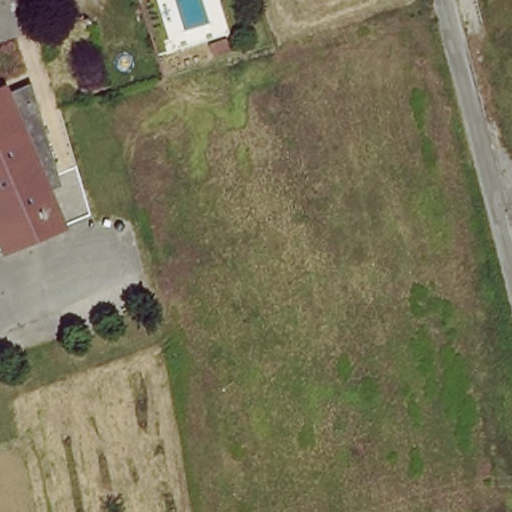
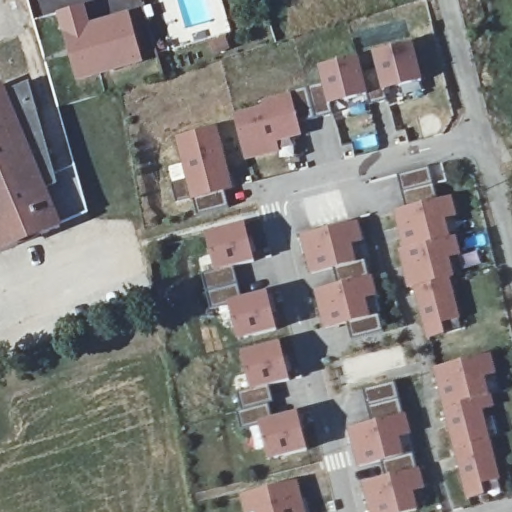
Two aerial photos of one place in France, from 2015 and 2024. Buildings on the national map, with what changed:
new [(140,4),(139,0),(150,0),(140,4)]
new [(87,6),(92,26),(130,14),(144,65),(77,85),(56,15),(87,6)]
new [(263,109),(261,103),(320,84),(317,70),(357,59),(362,74),(376,70),(373,56),(412,46),(423,86),(384,96),(387,103),(370,108),(369,99),(330,110),(332,117),(297,126),(302,139),(276,146),(279,154),(244,164),(231,118),(263,109)]
unchanged [(37,92),(55,154),(58,165),(42,170),(42,171),(53,210),(61,237),(0,256),(0,104),(20,98),(37,92)]
new [(216,130),(232,192),(226,194),(230,209),(196,217),(192,202),(175,206),(171,186),(185,182),(175,140),(216,130)]
new [(428,169),(438,203),(452,199),(457,219),(446,222),(451,240),(459,238),(464,257),(450,262),(456,281),(452,283),(462,322),(442,327),(444,336),(427,342),(412,291),(407,293),(397,252),(402,251),(393,215),(405,211),(397,178),(428,169)]
new [(359,222),(364,244),(353,247),(358,264),(364,263),(368,280),(372,278),(377,299),(367,303),(372,320),(378,318),(382,335),(351,343),(347,326),(322,332),(313,294),(338,288),(334,272),(310,278),(301,239),(359,222)]
new [(209,313),(200,276),(214,272),(205,238),(246,229),(255,266),(236,271),(244,303),(266,298),(277,334),(238,345),(228,307),(209,313)]
new [(249,392),(240,358),(279,347),(289,385),(271,389),(273,405),(268,407),(273,422),(297,417),(308,455),(268,466),(258,428),(242,434),(236,414),(241,413),(237,397),(249,392)]
new [(491,358),(497,377),(484,381),(489,398),(493,397),(497,409),(482,414),(501,483),(482,488),(485,498),(467,502),(433,372),(491,358)]
new [(402,418),(406,418),(411,438),(400,440),(405,458),(412,456),(416,472),(420,471),(426,493),(414,495),(419,512),(370,512),(363,488),(386,481),(381,466),(359,472),(348,432),(372,425),(363,393),(393,385),(402,418)]
new [(305,512),(244,512),(240,498),(297,483),(305,512)]

